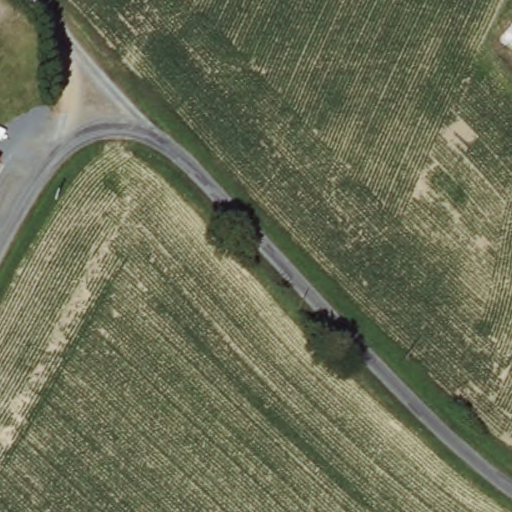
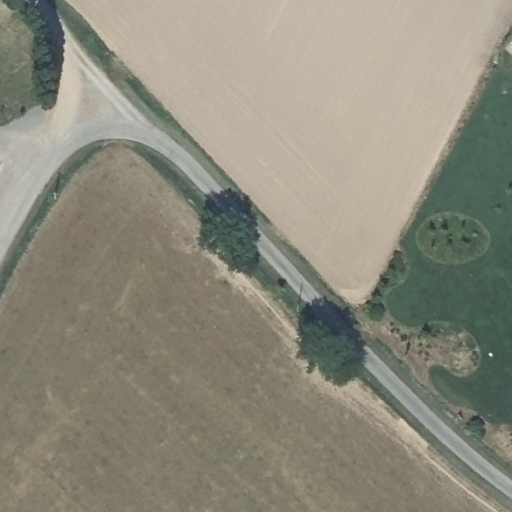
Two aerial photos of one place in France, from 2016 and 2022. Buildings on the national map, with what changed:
unchanged [(494,40),(512,20),(512,54),(494,40)]

